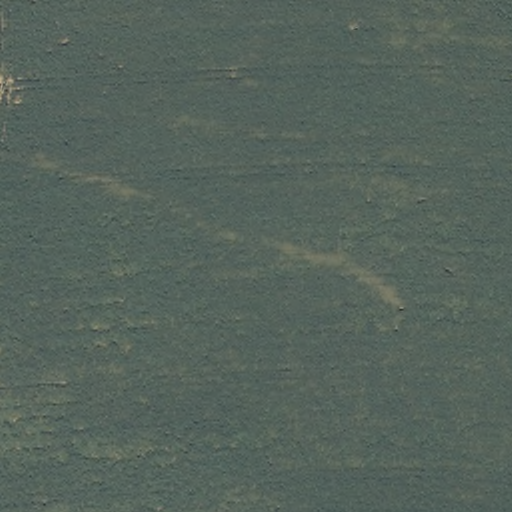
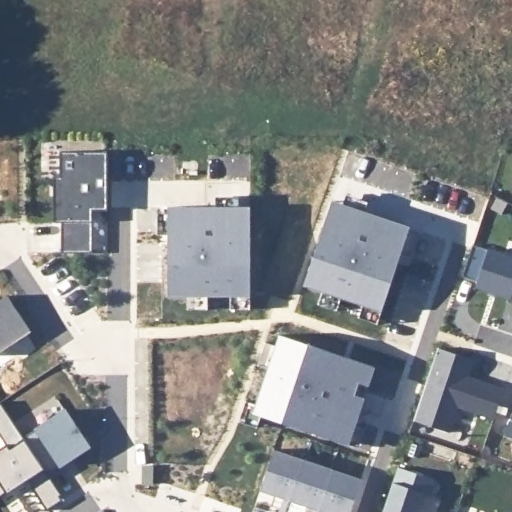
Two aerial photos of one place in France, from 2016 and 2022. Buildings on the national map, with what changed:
new [(59,151),(106,151),(106,210),(91,210),(91,252),(60,252),(60,220),(77,220),(78,207),(59,207),(59,151)]
new [(330,200),(342,205),(345,194),(367,201),(363,211),(408,227),(408,228),(418,231),(410,256),(400,253),(321,226),(330,200)]
new [(176,207),(212,207),(214,207),(214,196),(237,197),(237,207),(249,207),(249,235),(249,296),(166,296),(166,207),(176,207)]
new [(340,297),(335,310),(317,303),(321,291),(302,285),(321,226),(400,253),(380,311),(376,323),(357,317),(361,305),(340,297)]
new [(512,258),(512,279),(506,297),(474,286),(476,281),(460,276),(471,244),(512,258)]
new [(0,350),(0,300),(6,295),(29,330),(0,350)]
new [(254,403),(266,367),(256,365),(264,341),(274,345),(278,334),(327,350),(317,381),(332,386),(326,403),(311,398),(301,428),(260,415),(256,427),(237,420),(244,400),(254,403)]
new [(472,360),(466,376),(476,380),(502,389),(492,419),(456,407),(448,432),(412,420),(436,348),(472,360)]
new [(311,398),(326,403),(332,386),(317,381),(327,350),(373,366),(347,443),(301,428),(311,398)]
new [(46,473),(63,499),(46,510),(32,486),(35,485),(30,476),(7,492),(0,496),(0,449),(6,445),(0,437),(0,405),(22,436),(43,467),(46,473)]
new [(63,410),(87,446),(46,473),(22,436),(63,410)]
new [(360,479),(349,512),(323,512),(259,490),(272,450),(360,479)]
new [(434,480),(429,496),(422,493),(416,512),(381,512),(396,467),(434,480)]

